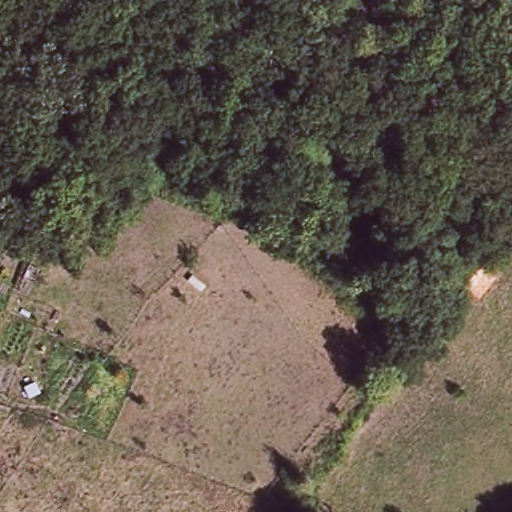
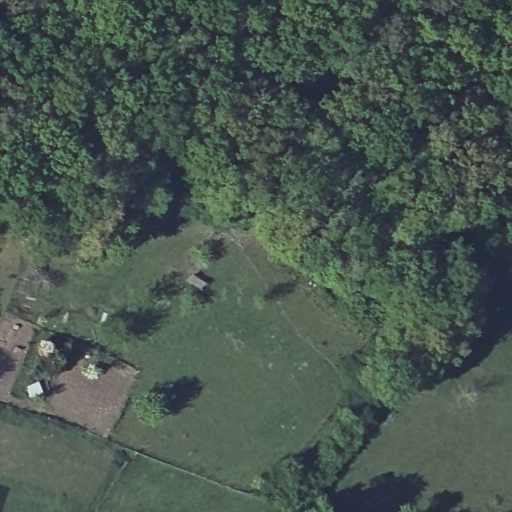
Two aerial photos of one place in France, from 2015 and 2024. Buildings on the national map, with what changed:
unchanged [(512,45),(512,53),(509,52),(512,45)]

